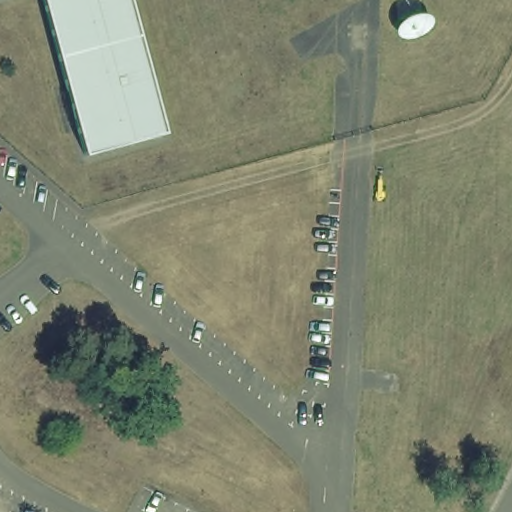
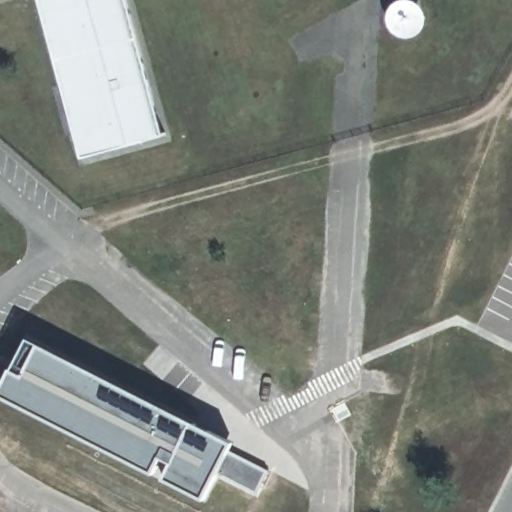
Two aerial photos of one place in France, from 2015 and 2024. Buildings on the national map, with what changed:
unchanged [(89,155),(48,0),(131,0),(167,133),(89,155)]
demolished [(433,22),(430,31),(425,38),(413,44),(410,44),(402,43),(390,35),(387,22),(389,11),(397,0),(399,0),(420,0),(425,4),(433,22)]
demolished [(505,124),(512,110),(512,127),(505,124)]
new [(233,442),(230,451),(270,471),(258,495),(220,475),(206,500),(0,395),(0,383),(23,336),(233,442)]

